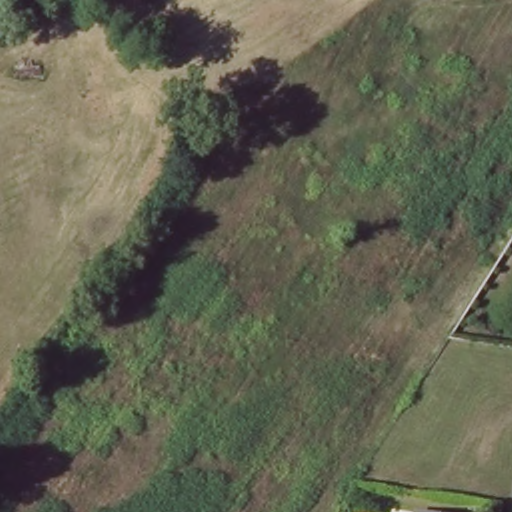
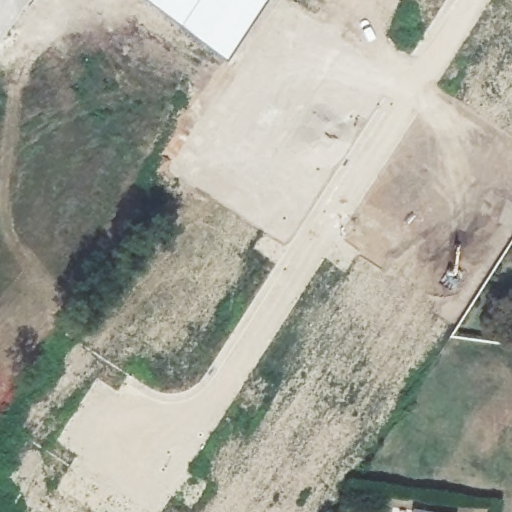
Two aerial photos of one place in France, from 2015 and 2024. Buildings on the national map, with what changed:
new [(147,0),(266,0),(227,59),(147,0)]

